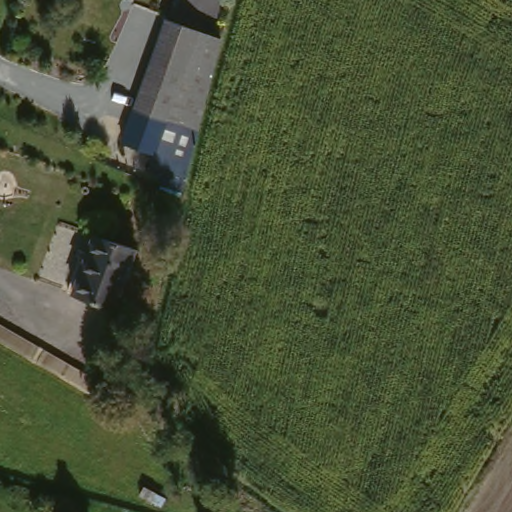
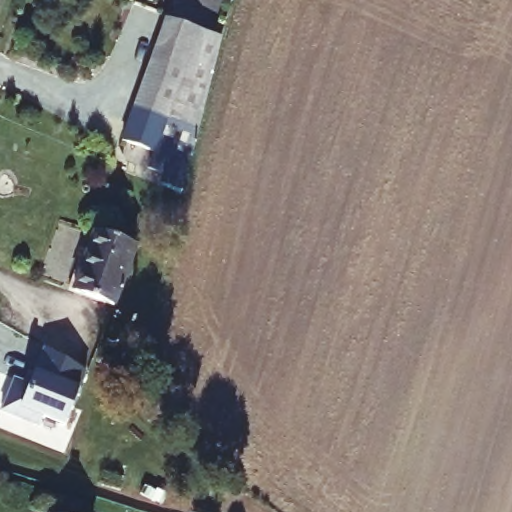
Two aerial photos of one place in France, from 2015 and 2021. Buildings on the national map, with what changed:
unchanged [(189,184),(149,169),(153,153),(120,141),(168,21),(169,19),(223,41),(223,42),(202,118),(189,184)]
unchanged [(71,286),(84,245),(91,247),(97,229),(135,242),(114,302),(71,286)]
new [(15,377),(31,382),(44,345),(86,366),(68,421),(46,413),(43,423),(4,410),(15,377)]

